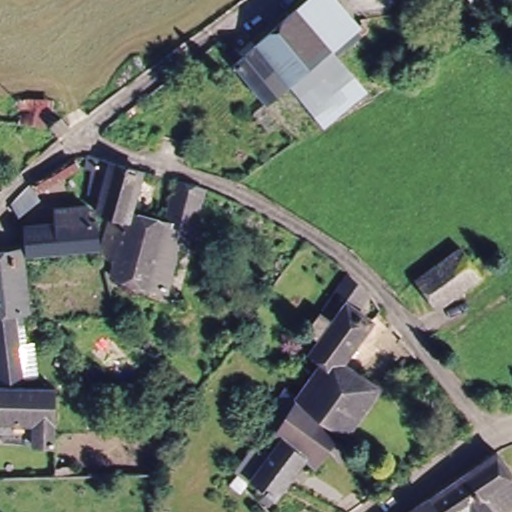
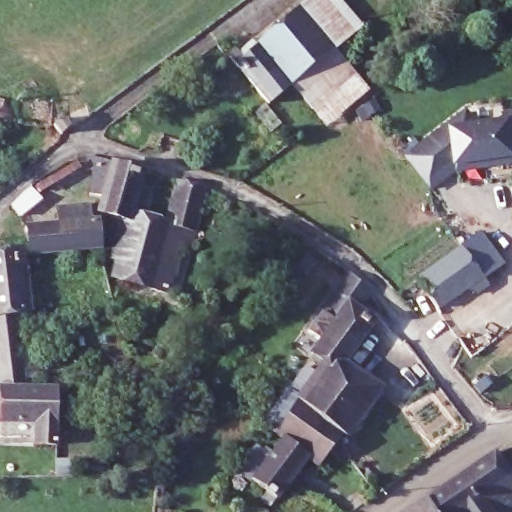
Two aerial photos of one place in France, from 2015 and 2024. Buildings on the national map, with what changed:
unchanged [(287,81),(255,41),(304,0),(336,0),(356,24),(345,32),(328,45),(291,77),(287,81)]
new [(474,0),(475,0),(474,1),(474,0)]
unchanged [(228,55),(235,48),(239,52),(252,42),(285,82),(263,100),(228,55)]
unchanged [(328,45),(363,86),(325,117),(291,77),(328,45)]
new [(512,108),(512,162),(455,170),(430,190),(402,154),(464,107),(492,102),(494,110),(512,108)]
unchanged [(187,247),(175,245),(161,294),(105,276),(110,262),(97,258),(97,252),(109,216),(96,211),(100,197),(89,194),(94,171),(85,170),(83,159),(118,166),(140,172),(127,213),(159,222),(172,180),(195,187),(201,191),(187,247)]
unchanged [(40,203),(21,217),(13,205),(30,187),(40,203)]
unchanged [(24,255),(24,253),(24,227),(55,224),(55,212),(85,209),(85,214),(93,213),(97,252),(24,255)]
unchanged [(434,311),(431,307),(415,281),(460,250),(480,281),(434,311)]
unchanged [(21,312),(10,314),(18,390),(18,392),(0,392),(0,254),(17,254),(21,312)]
unchanged [(344,435),(339,431),(300,391),(322,358),(312,351),(300,342),(313,322),(347,272),(368,293),(356,310),(368,318),(341,361),(374,382),(378,387),(344,435)]
unchanged [(336,436),(347,451),(337,458),(328,446),(314,462),(302,454),(284,478),(265,502),(258,495),(264,486),(252,476),(281,435),(263,422),(289,385),(300,391),(339,431),(336,436)]
unchanged [(0,437),(0,392),(18,392),(18,390),(52,391),(51,441),(0,437)]
unchanged [(497,450),(512,472),(512,501),(496,512),(407,512),(497,450)]

